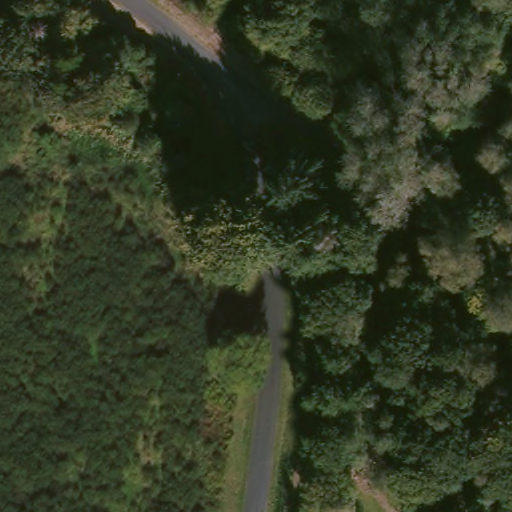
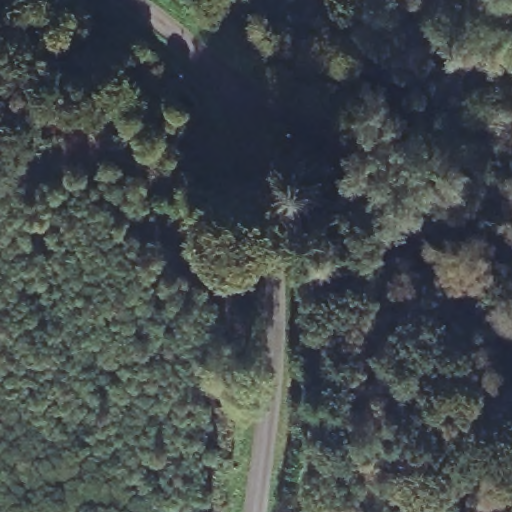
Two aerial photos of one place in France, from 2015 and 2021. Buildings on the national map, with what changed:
unchanged [(164,90),(191,102),(166,157),(139,146),(164,90)]

